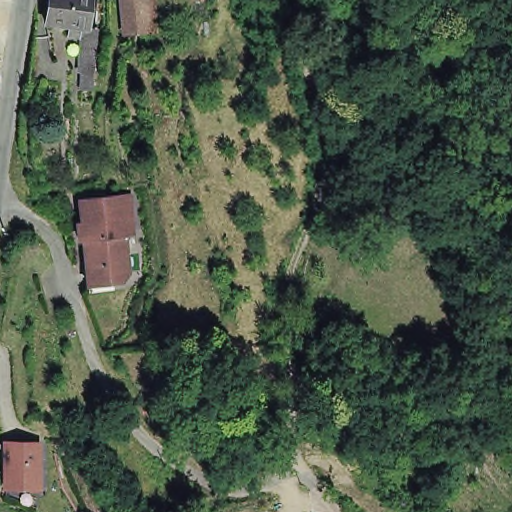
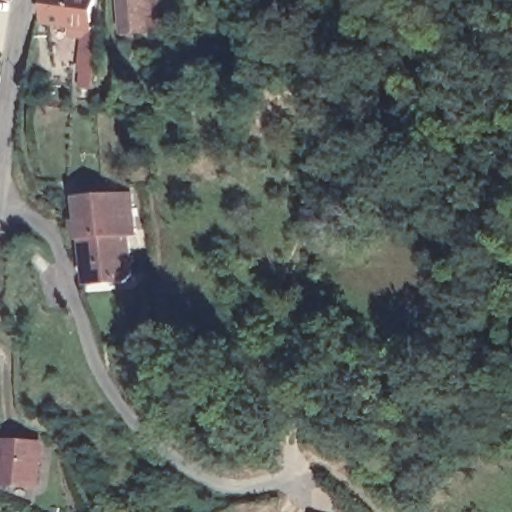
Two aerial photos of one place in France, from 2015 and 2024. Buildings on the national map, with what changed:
unchanged [(82,76),(80,76),(83,42),(69,40),(70,30),(46,27),(49,0),(91,0),(87,32),(97,33),(93,77),(92,93),(81,92),(82,76)]
unchanged [(122,0),(153,0),(156,32),(135,33),(135,43),(127,43),(126,34),(122,0)]
unchanged [(122,285),(87,288),(77,203),(127,197),(132,237),(125,238),(129,275),(122,285)]
unchanged [(41,489),(0,489),(0,438),(41,439),(41,489)]

